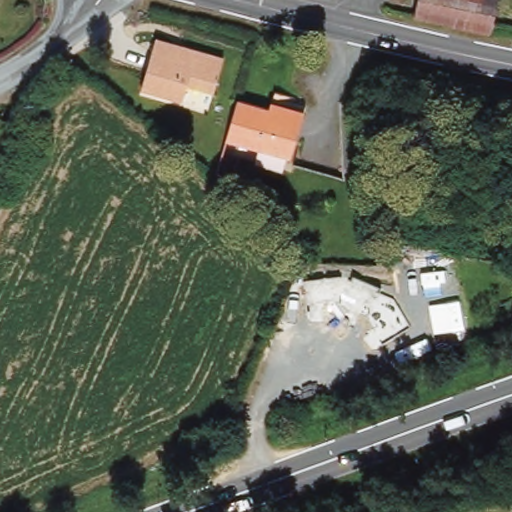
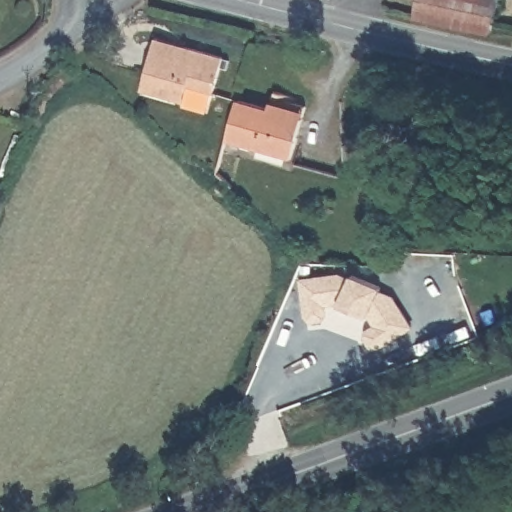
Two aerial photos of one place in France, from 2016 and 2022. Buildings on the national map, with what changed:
unchanged [(420,14),(423,0),(499,0),(492,31),(420,14)]
unchanged [(186,82),(182,99),(140,88),(151,47),(154,35),(181,42),(222,52),(212,88),(186,82)]
unchanged [(291,158),(226,141),(237,99),(270,108),(272,97),(305,105),(291,158)]
demolished [(282,304),(297,260),(318,266),(302,310),(282,304)]
new [(370,346),(366,334),(368,326),(373,324),(367,314),(338,303),(327,305),(328,314),(324,320),(312,322),(305,314),(301,278),(353,273),(382,286),(381,289),(395,295),(413,328),(378,349),(370,346)]
demolished [(371,303),(356,333),(317,314),(331,284),(371,303)]

